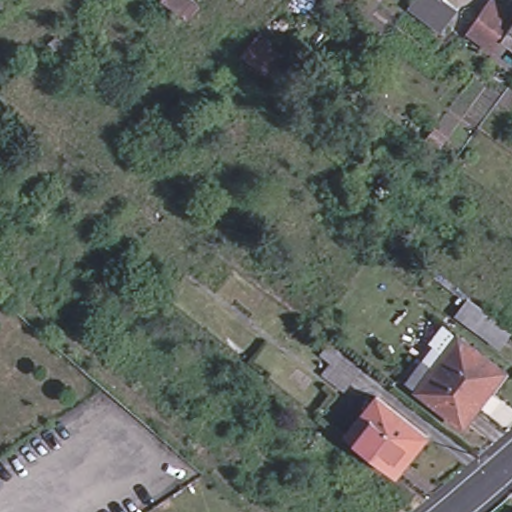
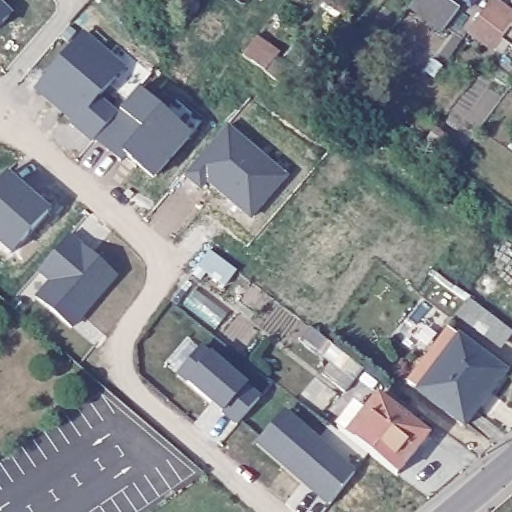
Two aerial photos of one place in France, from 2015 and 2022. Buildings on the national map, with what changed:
new [(14,10),(0,25),(0,0),(3,0),(14,10)]
unchanged [(199,6),(190,17),(189,18),(164,0),(191,0),(199,6)]
unchanged [(410,0),(411,0),(454,0),(458,3),(443,24),(410,0)]
unchanged [(499,39),(495,44),(469,24),(470,22),(486,0),(500,0),(512,9),(512,44),(501,36),(499,39)]
new [(73,122),(75,120),(62,108),(63,106),(57,99),(55,102),(43,93),(48,76),(85,34),(122,68),(96,98),(115,115),(94,140),(73,122)]
new [(120,160),(95,138),(140,87),(137,91),(188,136),(155,174),(128,150),(125,154),(120,160)]
new [(229,122),(290,175),(252,219),(207,181),(200,189),(185,174),(229,122)]
new [(152,178),(125,154),(128,150),(155,174),(152,178)]
new [(9,170),(50,206),(12,252),(0,241),(0,179),(9,170)]
new [(115,276),(82,315),(77,312),(68,323),(37,298),(52,281),(40,270),(70,236),(115,276)]
new [(208,248),(235,268),(225,283),(198,263),(208,248)]
unchanged [(470,298),(512,329),(512,333),(500,350),(457,317),(470,298)]
unchanged [(472,401),(478,405),(463,424),(411,384),(407,381),(423,359),(427,361),(434,367),(458,335),(498,366),(472,401)]
unchanged [(362,366),(345,388),(322,370),(330,360),(320,352),(330,340),(362,366)]
new [(258,397),(237,423),(179,374),(200,349),(258,397)]
unchanged [(367,451),(345,434),(375,394),(400,412),(425,433),(395,473),(367,451)]
new [(355,473),(332,505),(313,491),(317,485),(305,476),(302,480),(259,443),(285,412),(355,473)]

